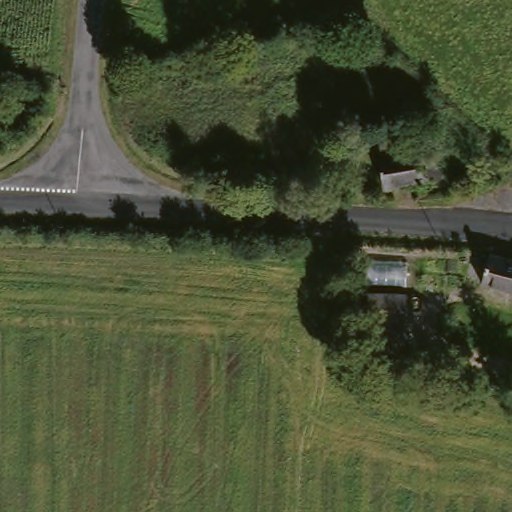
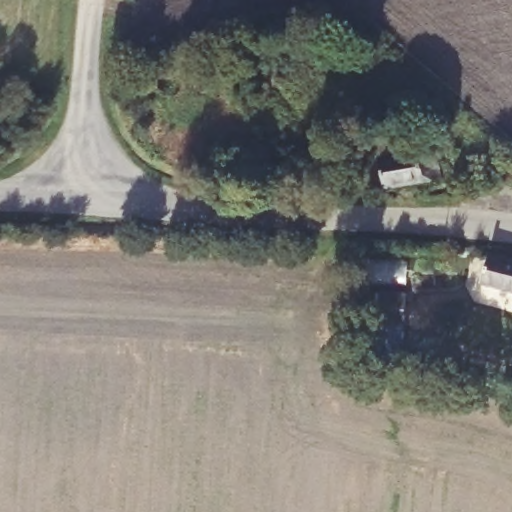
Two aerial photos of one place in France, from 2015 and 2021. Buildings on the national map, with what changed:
unchanged [(364,156),(418,155),(419,180),(405,181),(405,185),(365,186),(364,156)]
unchanged [(466,292),(473,256),(512,265),(512,301),(466,292)]

